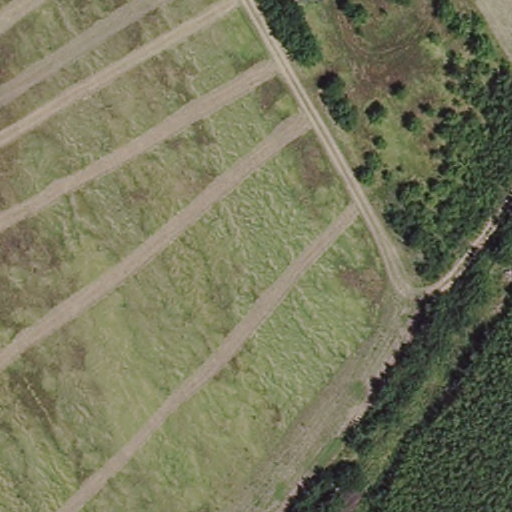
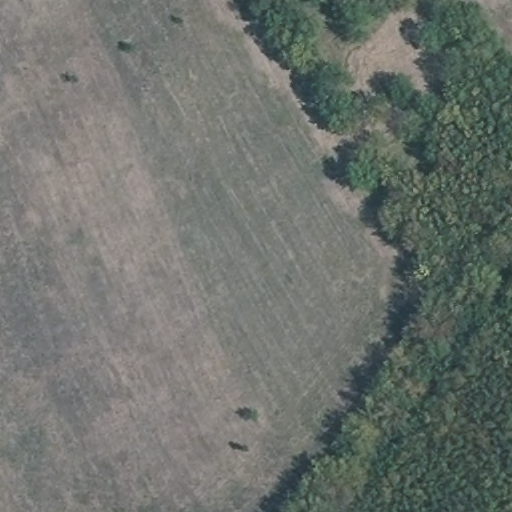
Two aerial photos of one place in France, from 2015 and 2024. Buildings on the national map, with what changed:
[]

